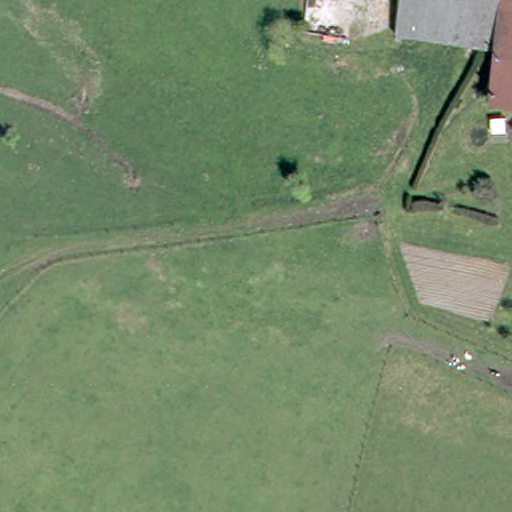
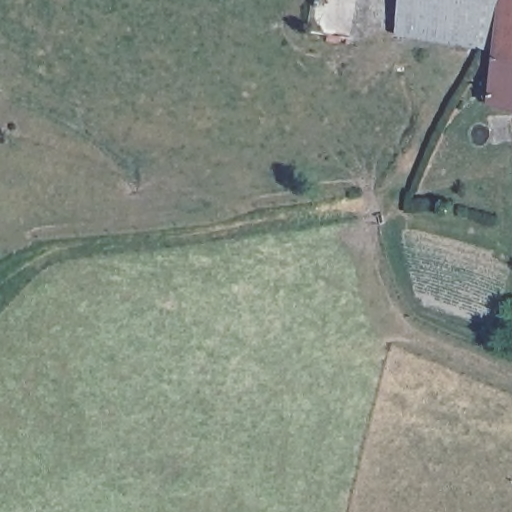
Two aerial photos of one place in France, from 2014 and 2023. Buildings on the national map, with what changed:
unchanged [(402,36),(404,0),(505,0),(502,44),(402,36)]
unchanged [(498,98),(501,60),(502,44),(505,0),(512,0),(512,99),(498,98)]

